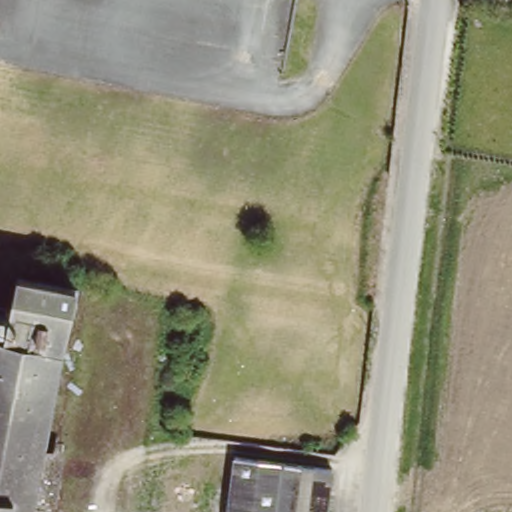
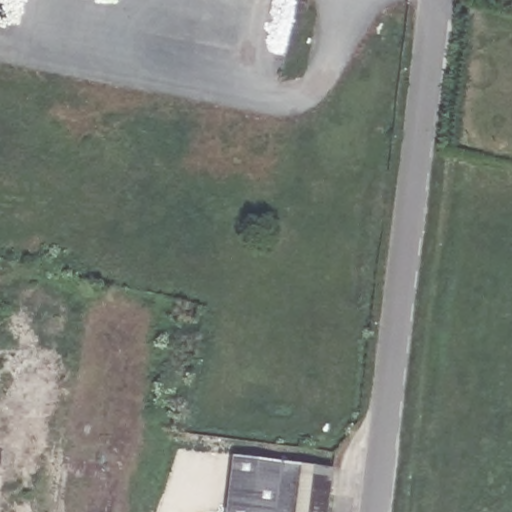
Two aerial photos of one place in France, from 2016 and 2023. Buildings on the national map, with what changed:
demolished [(23,268),(84,280),(37,512),(3,512),(0,511),(0,329),(10,331),(23,268)]
unchanged [(241,459),(339,472),(334,512),(234,512),(241,459)]

